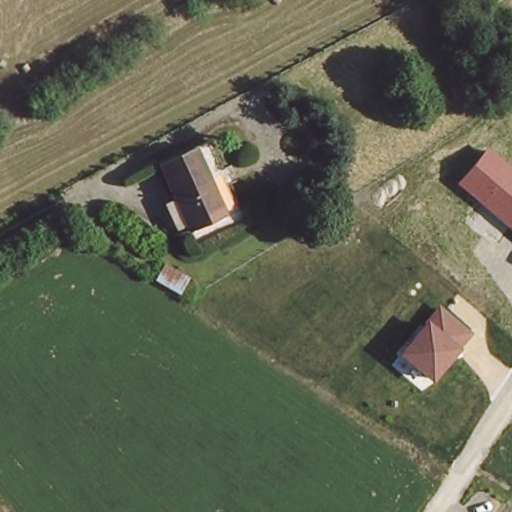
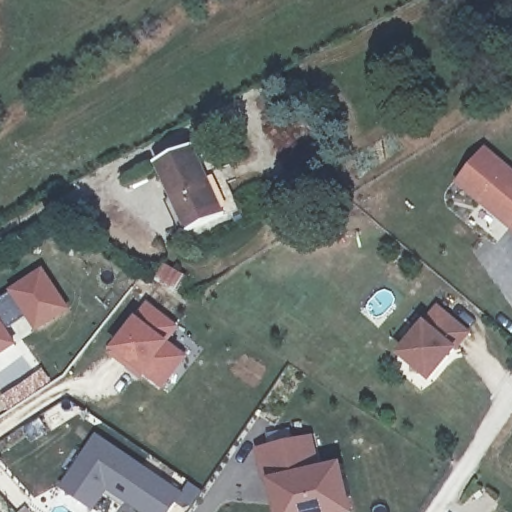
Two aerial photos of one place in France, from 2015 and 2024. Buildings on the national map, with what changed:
unchanged [(244,207),(196,238),(193,233),(147,168),(196,136),(243,206),(244,207)]
unchanged [(512,169),(512,232),(455,183),(484,145),(512,169)]
new [(25,317),(6,328),(15,345),(0,356),(0,300),(9,294),(7,291),(42,268),(71,309),(35,331),(25,317)]
new [(163,390),(143,375),(140,379),(107,354),(110,347),(137,316),(148,301),(179,327),(170,345),(186,356),(163,390)]
unchanged [(471,333),(429,380),(397,353),(438,304),(471,333)]
new [(314,434),(321,465),(341,460),(352,512),(274,512),(268,484),(262,485),(254,447),(314,434)]
new [(137,512),(107,492),(93,511),(60,488),(96,435),(183,493),(170,512),(137,512)]

